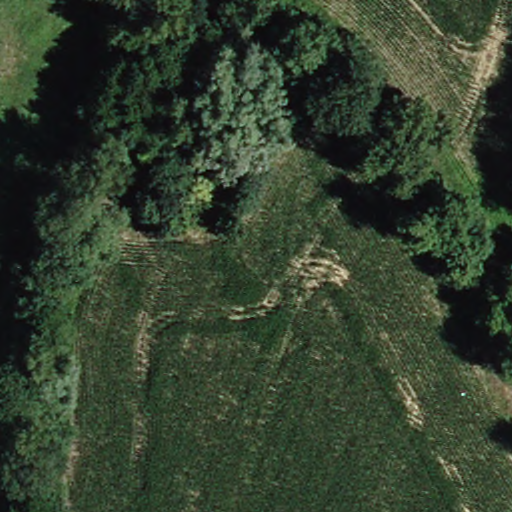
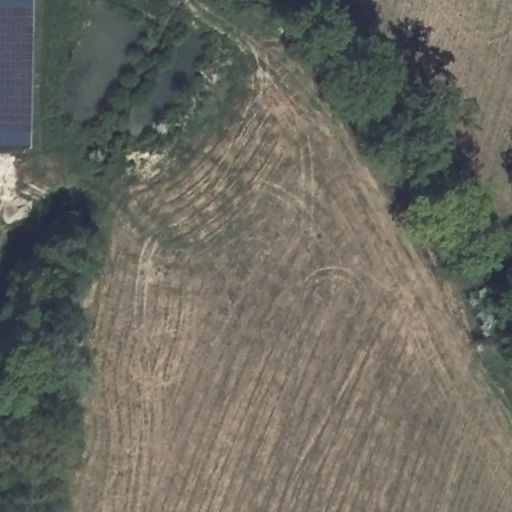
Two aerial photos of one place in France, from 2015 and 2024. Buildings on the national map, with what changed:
new [(24,147),(0,148),(0,0),(26,0),(24,147)]

